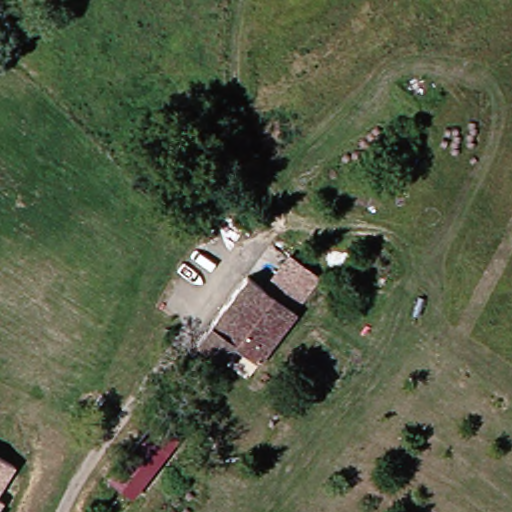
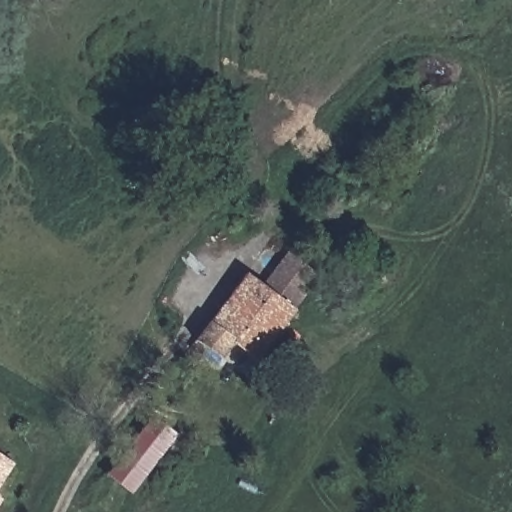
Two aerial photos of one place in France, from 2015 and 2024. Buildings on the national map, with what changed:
unchanged [(234,355),(222,346),(214,358),(201,348),(255,270),(309,307),(274,361),(243,340),(234,355)]
new [(133,494),(108,475),(155,415),(180,434),(133,494)]
unchanged [(16,458),(0,485),(0,449),(16,458)]
unchanged [(3,493),(0,498),(0,492),(3,493)]

